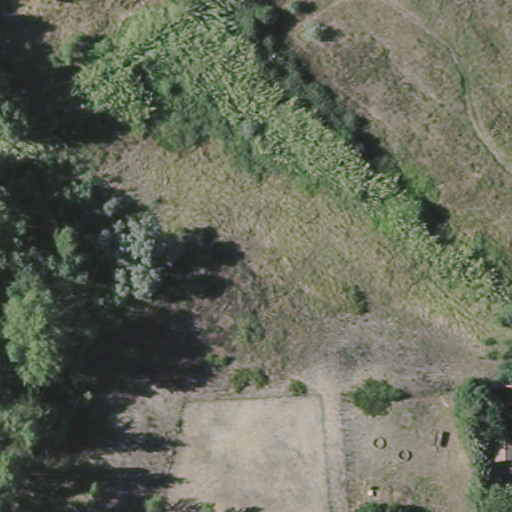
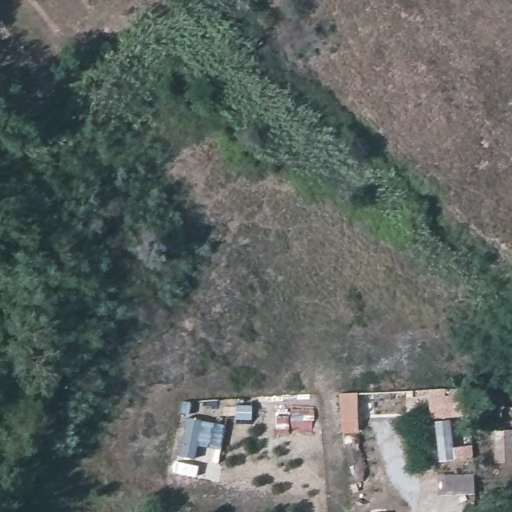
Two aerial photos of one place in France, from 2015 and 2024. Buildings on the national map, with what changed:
unchanged [(512,430),(512,463),(495,463),(494,431),(512,430)]

